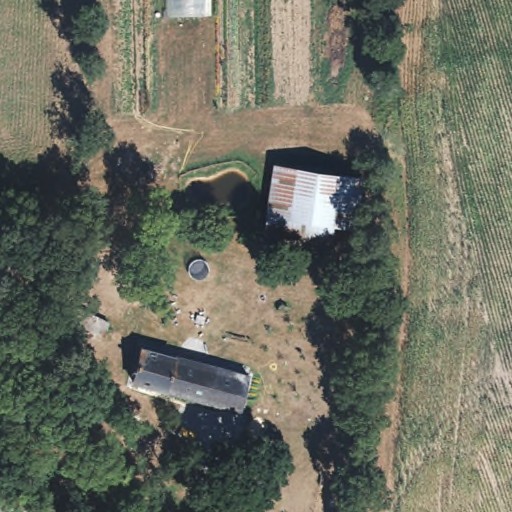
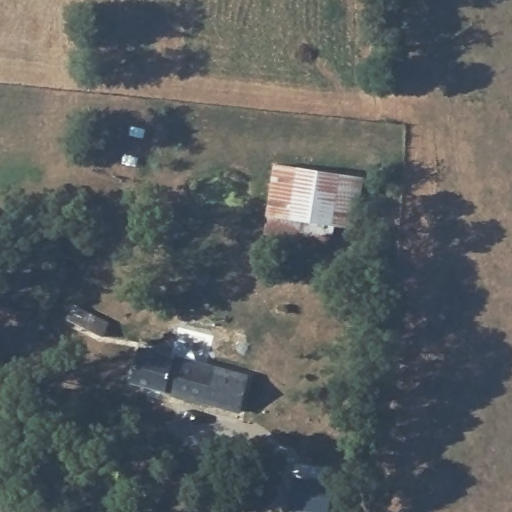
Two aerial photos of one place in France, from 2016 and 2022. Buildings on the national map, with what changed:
unchanged [(361,181),(354,230),(334,228),(330,250),(281,239),(286,217),(265,212),(274,167),(361,181)]
unchanged [(109,328),(105,343),(71,333),(75,319),(109,328)]
unchanged [(249,375),(241,413),(132,389),(139,353),(166,359),(249,375)]

